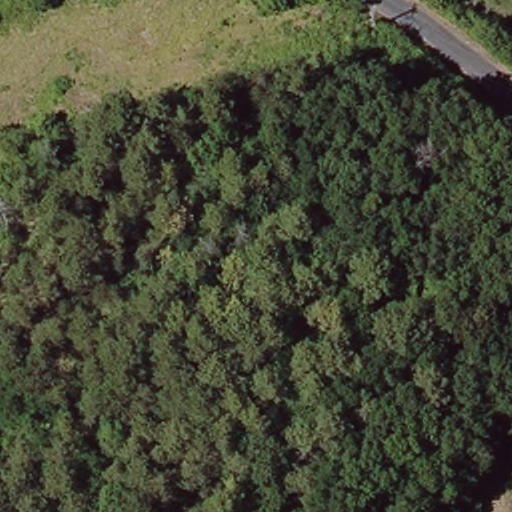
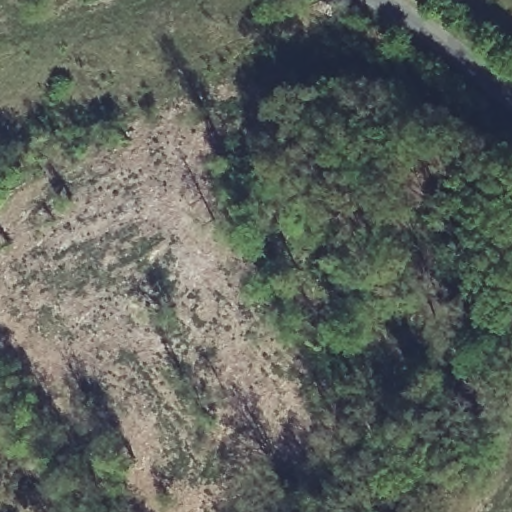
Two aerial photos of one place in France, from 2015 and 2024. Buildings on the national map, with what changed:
unchanged [(386,497),(381,495),(379,492),(378,487),(380,482),(383,480),(393,480),(395,484),(396,489),(395,493),(391,496),(386,497)]

